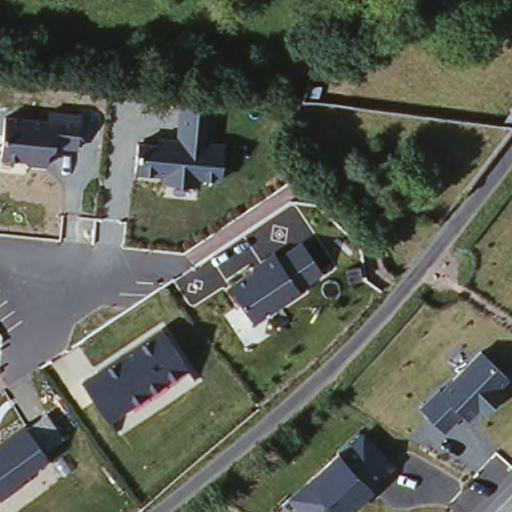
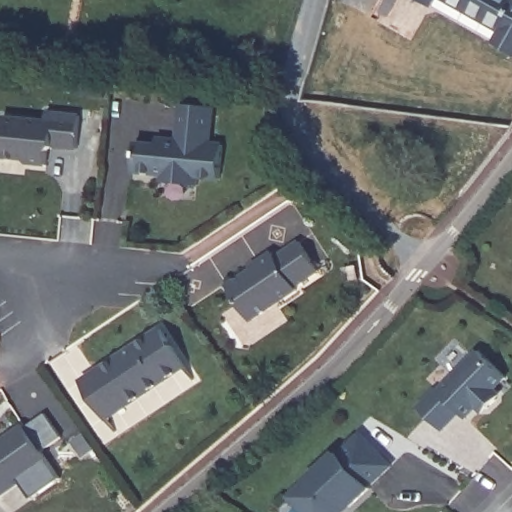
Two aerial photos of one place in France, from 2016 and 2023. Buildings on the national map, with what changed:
new [(512,60),(503,55),(509,44),(437,2),(433,8),(420,0),(512,0),(512,60)]
unchanged [(139,140),(163,140),(175,135),(180,106),(214,106),(211,139),(225,139),(221,178),(201,175),(200,188),(163,180),(163,176),(137,175),(139,140)]
unchanged [(5,115),(45,118),(46,110),(79,113),(76,149),(50,147),(48,164),(26,162),(26,158),(1,157),(5,115)]
unchanged [(274,252),(276,255),(300,239),(322,272),(299,290),(254,320),(230,283),(274,252)]
unchanged [(161,326),(190,365),(110,421),(80,378),(161,326)]
unchanged [(435,389),(440,390),(479,351),(509,378),(503,386),(506,390),(485,412),(480,408),(469,417),(462,412),(445,429),(421,405),(435,389)]
unchanged [(44,411),(63,437),(45,450),(50,458),(18,480),(21,486),(0,500),(0,439),(44,411)]
unchanged [(394,465),(370,484),(374,490),(348,512),(303,512),(288,497),(360,430),(394,465)]

